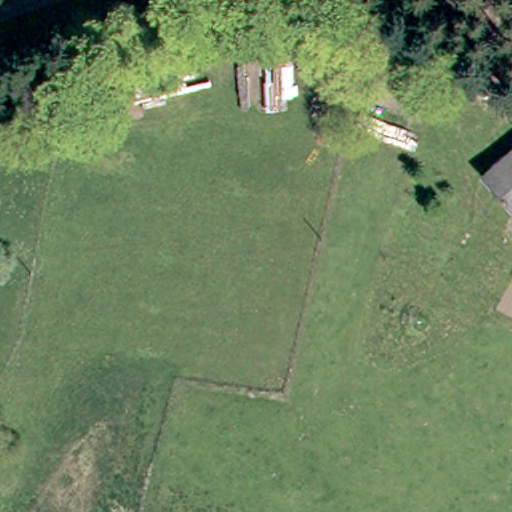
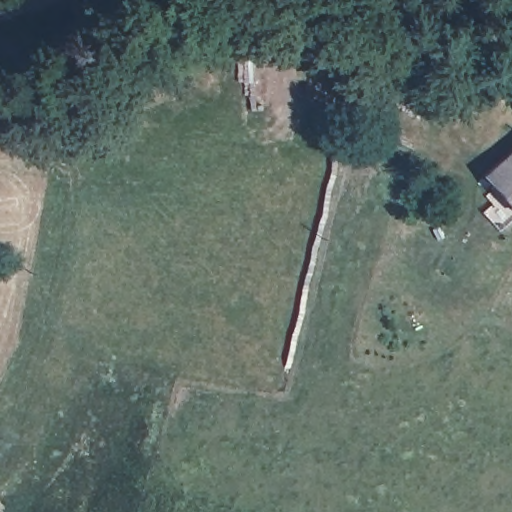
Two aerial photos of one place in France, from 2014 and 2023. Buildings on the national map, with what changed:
unchanged [(512,155),(512,203),(488,175),(512,155)]

